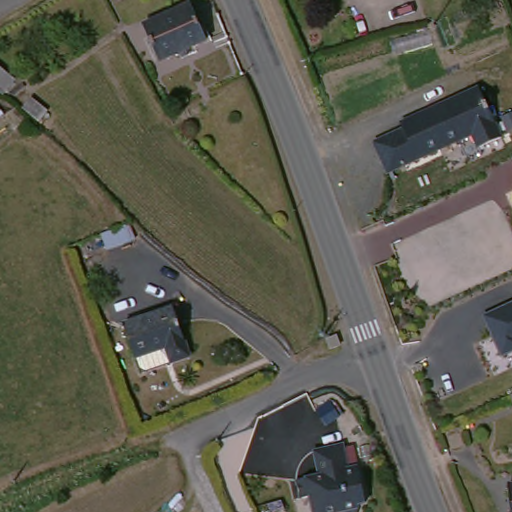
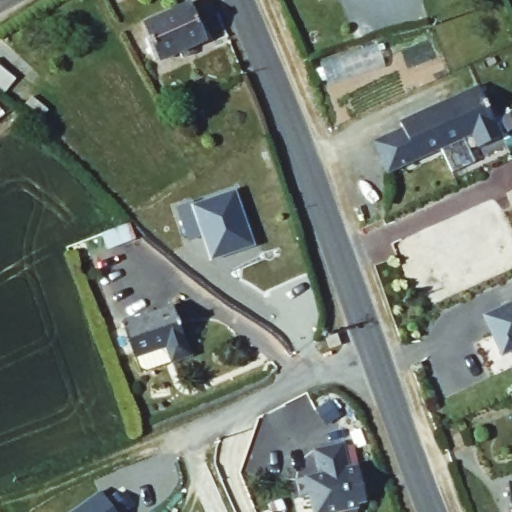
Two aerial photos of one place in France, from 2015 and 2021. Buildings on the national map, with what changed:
unchanged [(191,2),(206,41),(161,60),(144,22),(191,2)]
unchanged [(9,93),(0,87),(0,64),(20,79),(9,93)]
unchanged [(477,86),(500,135),(477,146),(470,132),(387,172),(373,144),(401,130),(398,124),(477,86)]
unchanged [(54,110),(47,121),(31,110),(37,100),(54,110)]
unchanged [(0,105),(0,103),(1,104),(0,105)]
new [(193,200),(194,203),(236,188),(254,241),(238,246),(239,249),(212,258),(203,234),(189,239),(178,205),(193,200)]
unchanged [(124,232),(96,245),(87,226),(117,213),(124,232)]
unchanged [(194,346),(175,355),(174,356),(175,360),(152,368),(145,365),(142,356),(138,357),(124,320),(172,300),(194,346)]
unchanged [(500,355),(480,315),(512,301),(512,348),(500,355)]
unchanged [(365,505),(358,505),(360,508),(358,512),(312,512),(309,496),(300,498),(296,480),(320,475),(315,451),(345,445),(349,470),(358,468),(365,505)]
unchanged [(509,512),(506,478),(512,478),(512,512),(509,512)]
new [(109,498),(117,491),(128,505),(120,512),(69,512),(102,489),(109,498)]

